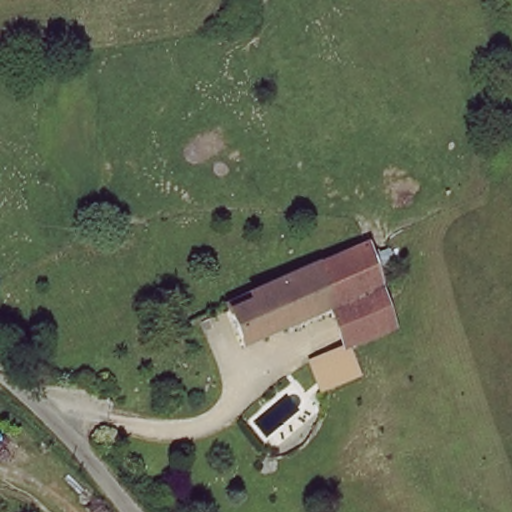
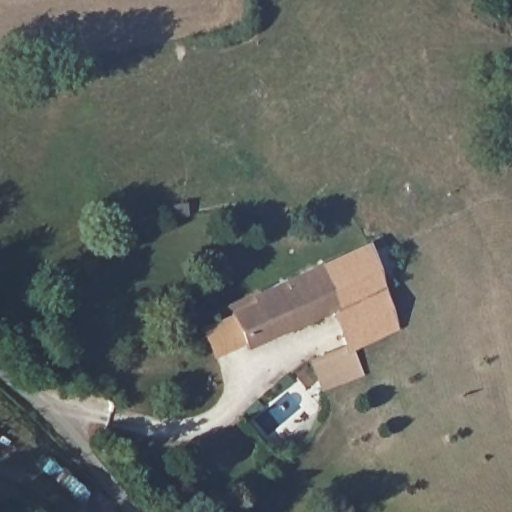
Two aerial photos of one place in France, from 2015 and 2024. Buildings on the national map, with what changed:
unchanged [(248,346),(229,313),(363,257),(372,253),(380,279),(383,290),(343,306),(248,346)]
unchanged [(398,335),(360,348),(343,306),(383,290),(398,335)]

